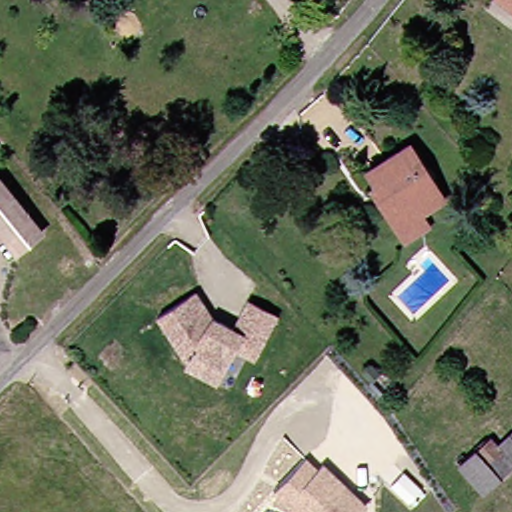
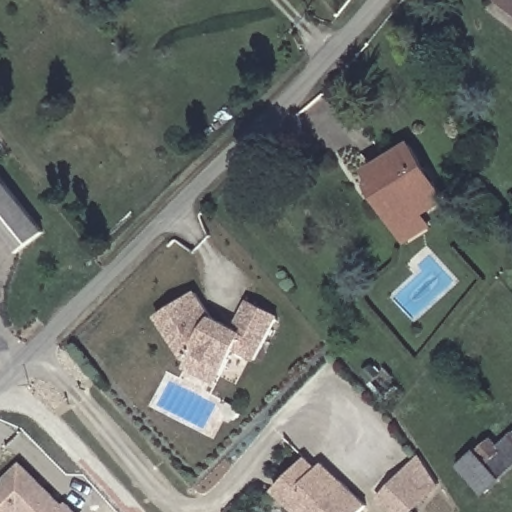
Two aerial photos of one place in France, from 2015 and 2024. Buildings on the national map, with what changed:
unchanged [(484,0),(512,0),(512,24),(484,0)]
unchanged [(366,187),(370,184),(363,172),(404,146),(438,201),(419,214),(427,228),(402,244),(366,187)]
unchanged [(0,239),(0,180),(38,226),(9,250),(0,239)]
unchanged [(185,365),(155,318),(193,293),(209,318),(233,330),(247,302),(275,318),(250,361),(233,352),(222,371),(213,386),(183,367),(185,365)]
unchanged [(470,447),(499,422),(496,419),(501,415),(512,428),(512,461),(495,476),(479,490),(454,461),(470,447)]
unchanged [(275,488),(308,457),(319,469),(324,463),(342,481),(367,506),(361,512),(299,512),(275,488)]
new [(0,485),(22,463),(74,512),(0,512),(0,485)]
new [(412,463),(435,487),(410,512),(387,488),(412,463)]

